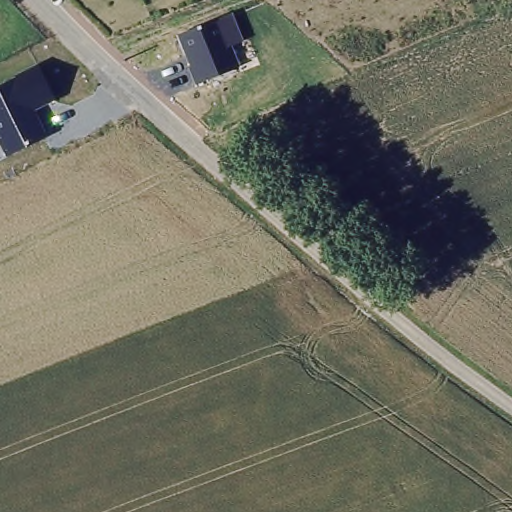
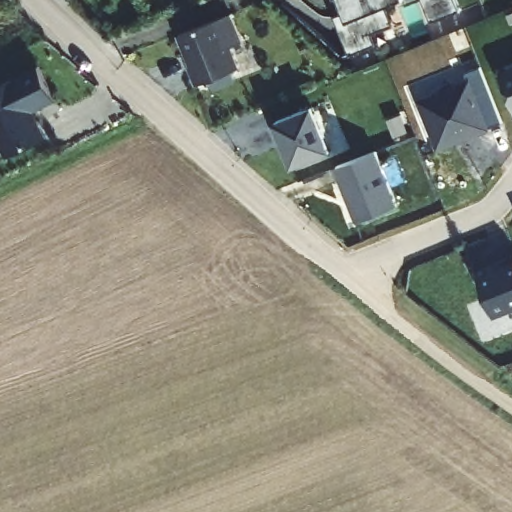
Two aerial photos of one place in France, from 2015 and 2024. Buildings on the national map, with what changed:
new [(451,0),(456,13),(426,26),(430,34),(412,42),(395,5),(381,11),(390,29),(367,37),(372,47),(347,58),(331,20),(337,17),(331,0),(451,0)]
unchanged [(243,41),(233,45),(240,67),(197,81),(180,32),(234,12),(243,41)]
unchanged [(59,99),(38,110),(50,136),(7,155),(0,141),(0,84),(43,65),(59,99)]
new [(419,99),(469,79),(466,72),(481,67),(502,121),(490,125),(492,129),(439,149),(419,99)]
new [(512,68),(512,107),(499,74),(512,68)]
new [(314,104),(332,150),(292,167),(274,120),(314,104)]
new [(373,153),(394,209),(352,226),(330,171),(373,153)]
new [(512,260),(512,311),(495,317),(477,274),(512,260)]

